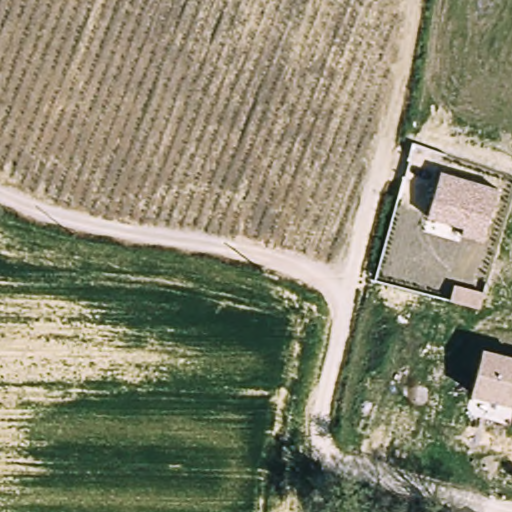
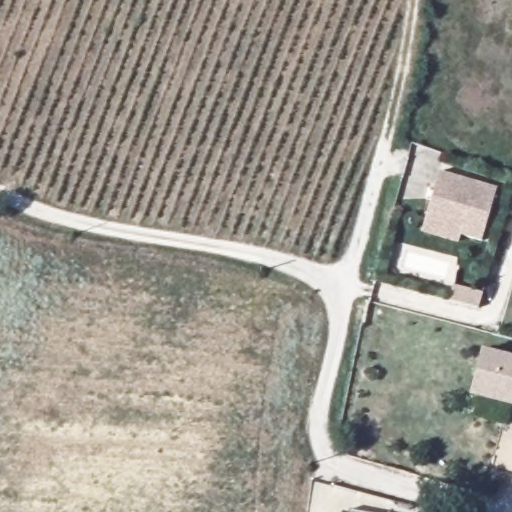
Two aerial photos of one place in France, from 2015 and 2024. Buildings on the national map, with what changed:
unchanged [(497,187),(482,242),(462,237),(464,227),(429,215),(442,172),(497,187)]
unchanged [(482,289),(479,306),(451,301),(454,284),(482,289)]
unchanged [(473,394),(483,350),(512,357),(512,402),(511,405),(473,394)]

